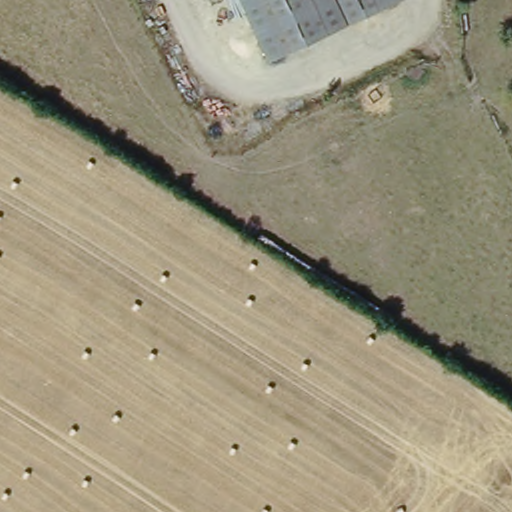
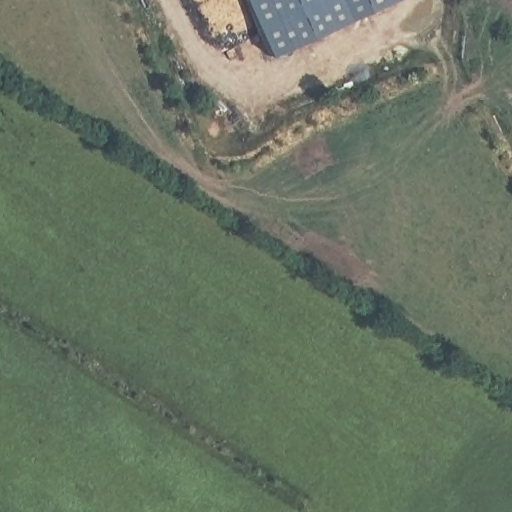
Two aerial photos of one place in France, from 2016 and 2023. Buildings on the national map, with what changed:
unchanged [(410,0),(282,55),(270,60),(244,0),(410,0)]

